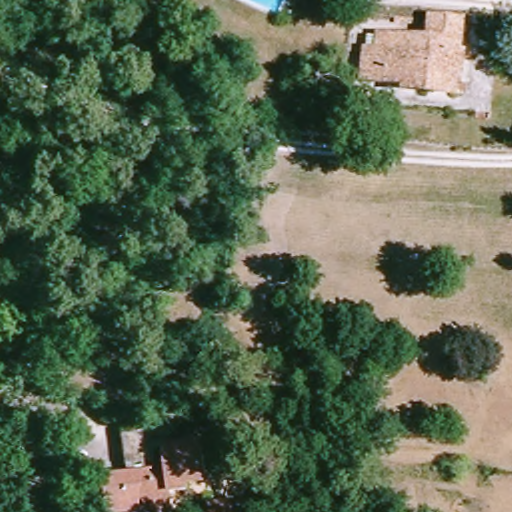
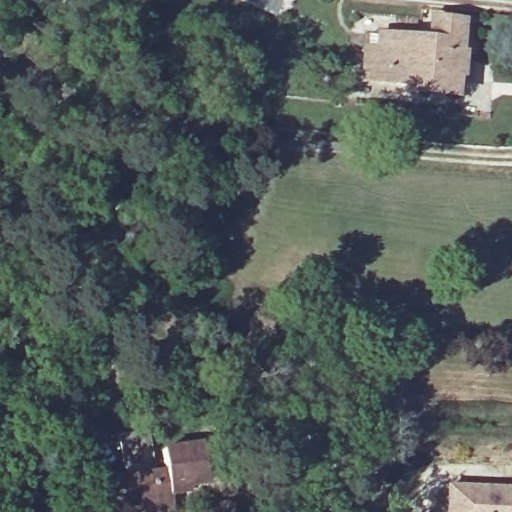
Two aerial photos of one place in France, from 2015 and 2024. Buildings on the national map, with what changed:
unchanged [(433,19),(460,20),(457,51),(462,52),(460,72),(455,72),(452,90),(405,86),(403,79),(361,76),(363,47),(372,49),(373,34),(387,35),(390,35),(430,39),(433,19)]
unchanged [(97,495),(101,493),(100,481),(119,478),(118,469),(115,437),(152,432),(156,471),(167,470),(166,448),(205,443),(207,480),(190,481),(191,492),(171,496),(172,512),(100,512),(97,495)]
new [(451,484),(512,487),(512,512),(450,512),(451,484)]

